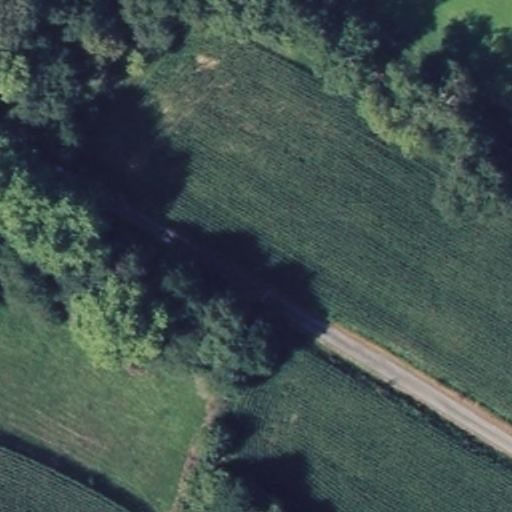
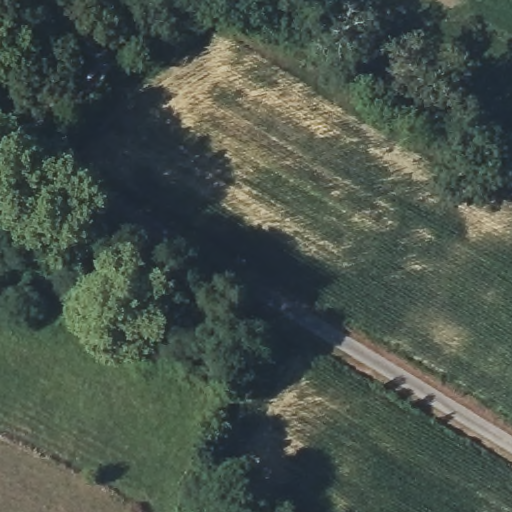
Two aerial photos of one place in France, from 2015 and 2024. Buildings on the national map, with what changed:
unchanged [(89,34),(90,50),(60,55),(55,25),(80,20),(89,34)]

